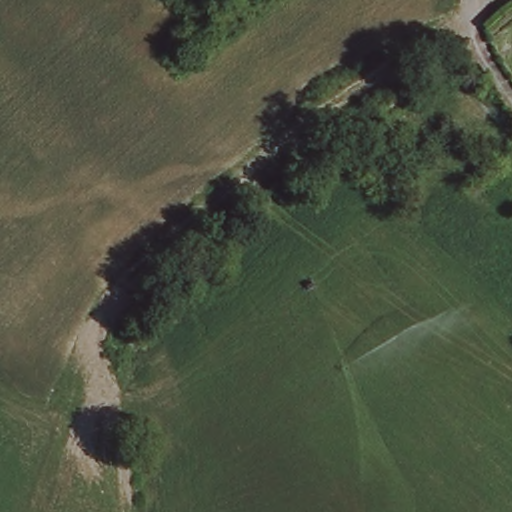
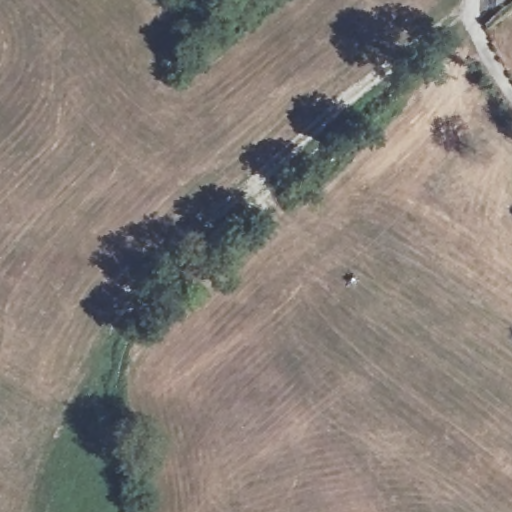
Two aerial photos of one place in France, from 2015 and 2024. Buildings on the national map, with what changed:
[]

